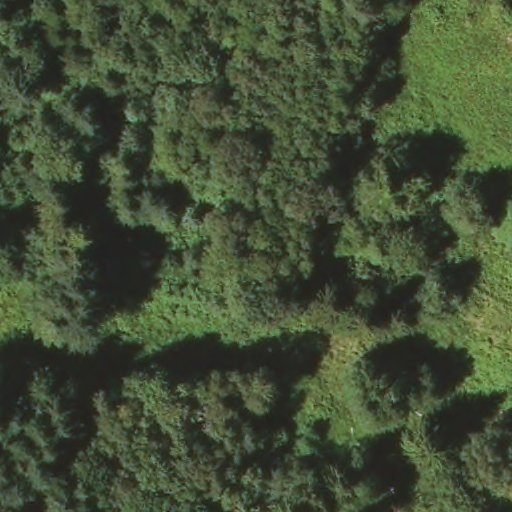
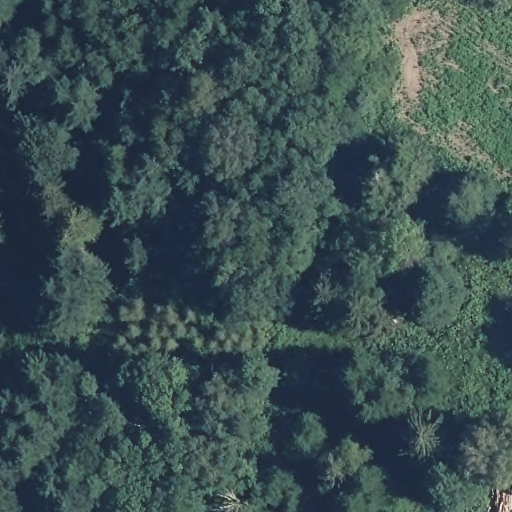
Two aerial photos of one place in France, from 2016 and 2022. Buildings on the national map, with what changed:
[]

